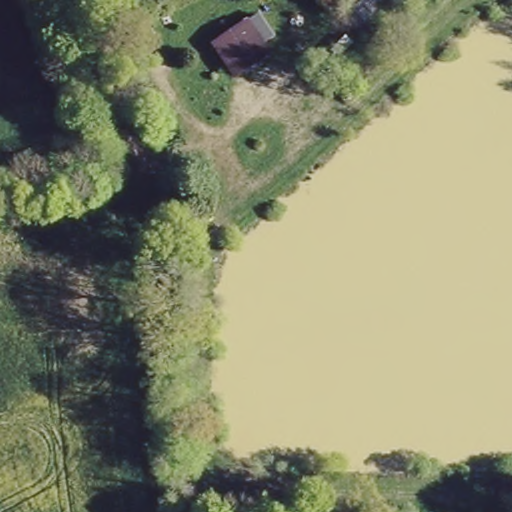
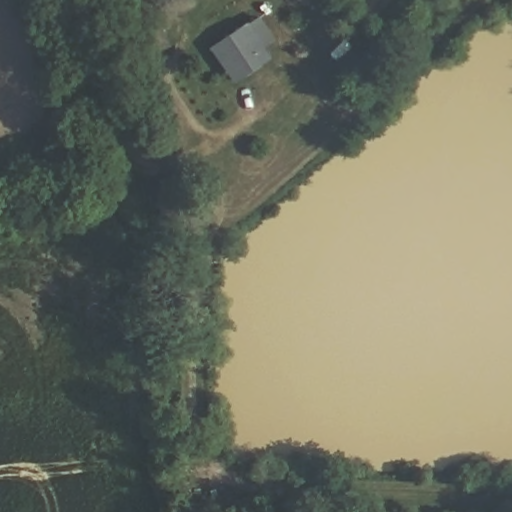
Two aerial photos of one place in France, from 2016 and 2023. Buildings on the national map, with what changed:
unchanged [(202,44),(245,20),(267,64),(225,83),(202,44)]
unchanged [(157,56),(165,92),(146,97),(139,61),(157,56)]

